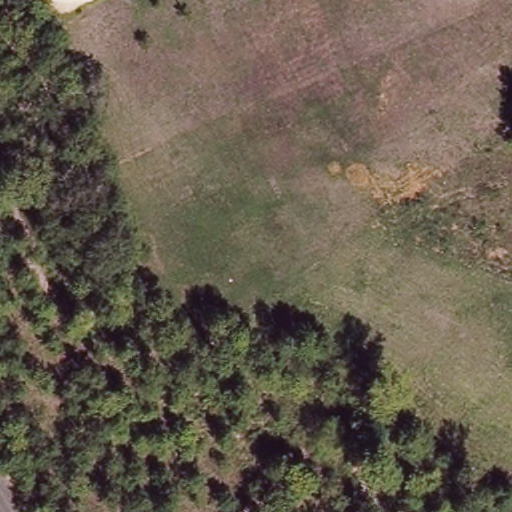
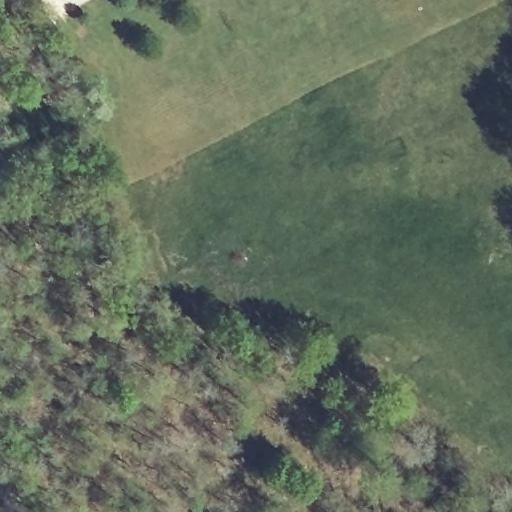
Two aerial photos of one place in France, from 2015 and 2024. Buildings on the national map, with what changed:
[]

